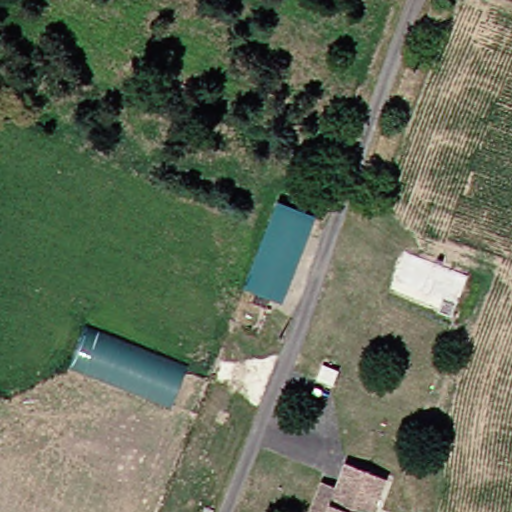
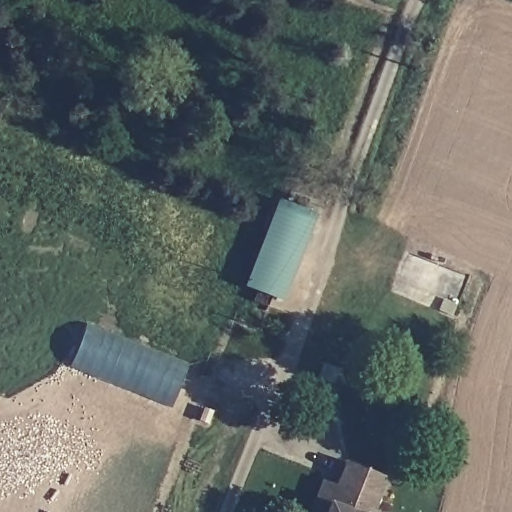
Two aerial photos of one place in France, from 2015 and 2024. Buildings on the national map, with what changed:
unchanged [(282,302),(273,298),(268,310),(253,304),(257,292),(247,288),(279,206),(289,209),(294,197),(310,202),(305,215),(313,217),(282,302)]
unchanged [(75,366),(91,327),(190,369),(176,407),(75,366)]
unchanged [(381,512),(317,512),(325,492),(338,498),(348,473),(390,489),(381,512)]

